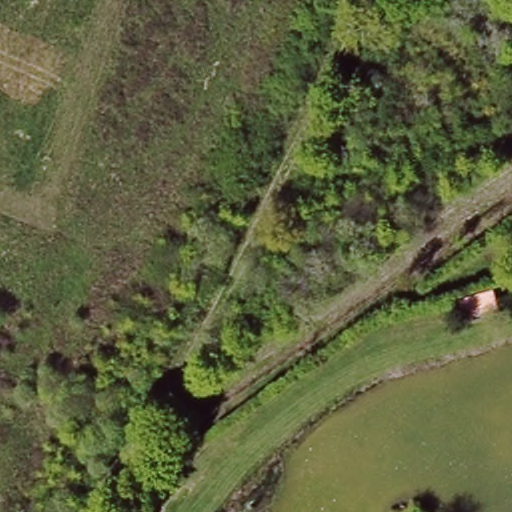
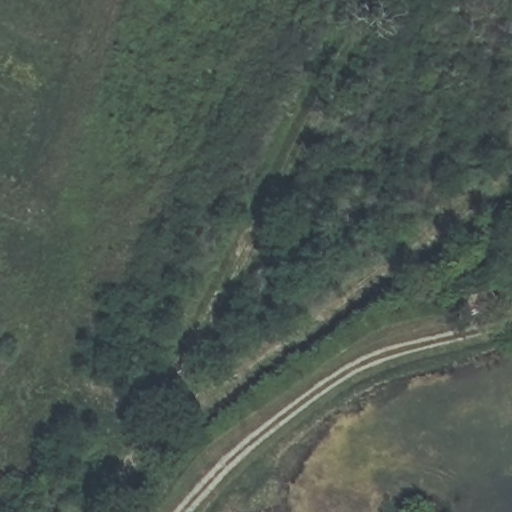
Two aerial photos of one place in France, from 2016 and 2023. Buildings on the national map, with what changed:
unchanged [(457,299),(492,287),(501,312),(466,322),(457,299)]

